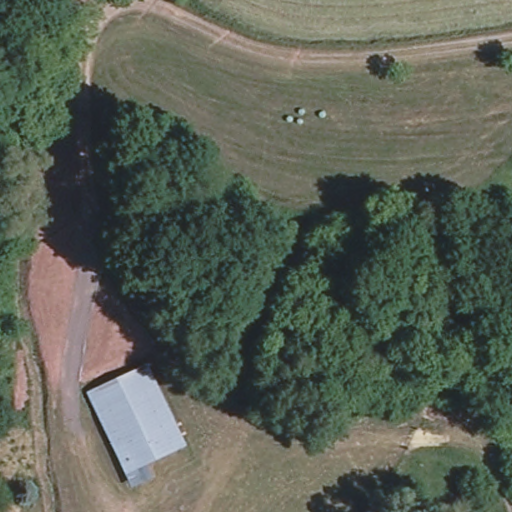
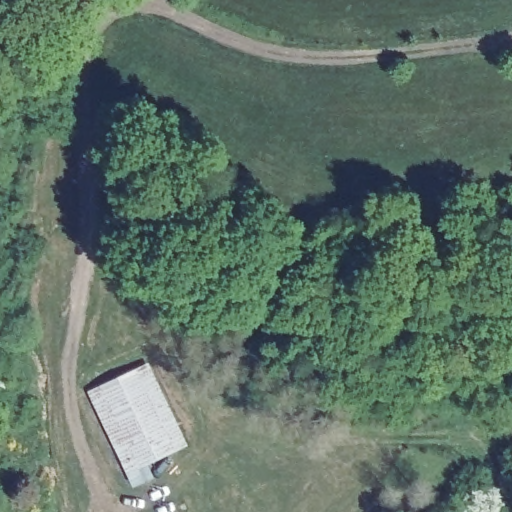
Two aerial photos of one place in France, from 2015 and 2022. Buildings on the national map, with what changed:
unchanged [(147,366),(181,440),(126,466),(91,392),(147,366)]

